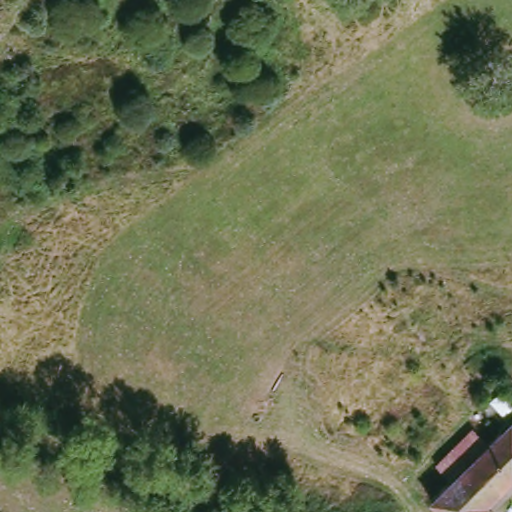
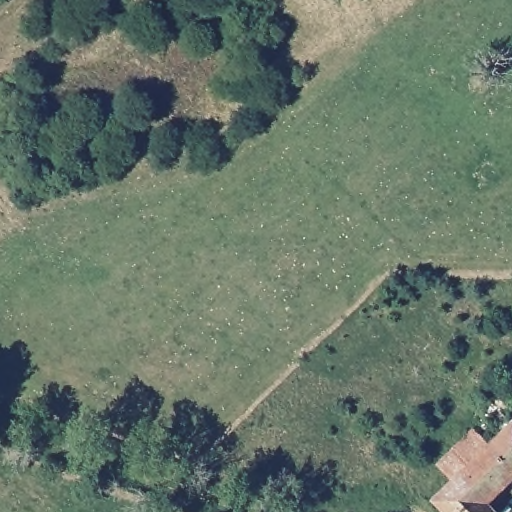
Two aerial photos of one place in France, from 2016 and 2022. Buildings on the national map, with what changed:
unchanged [(489,503),(498,511),(497,512),(446,512),(435,501),(455,483),(440,468),(476,432),(492,447),(512,430),(512,481),(489,503)]

